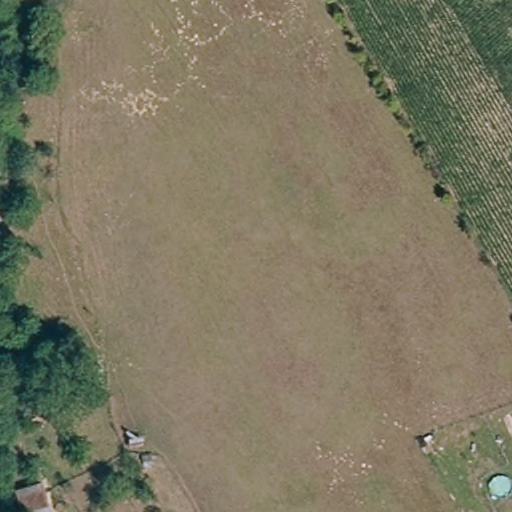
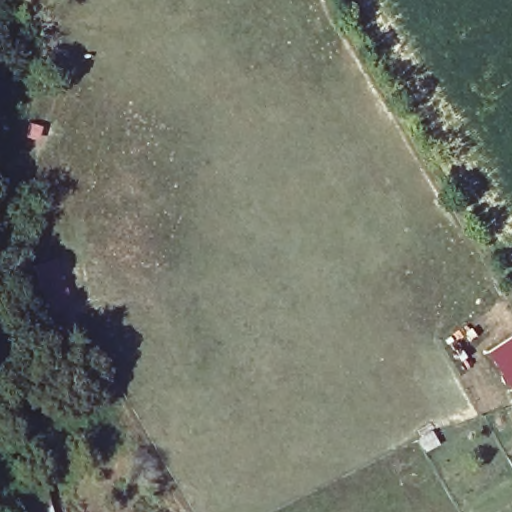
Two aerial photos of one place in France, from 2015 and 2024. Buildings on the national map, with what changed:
new [(485,356),(512,339),(512,385),(507,388),(485,356)]

